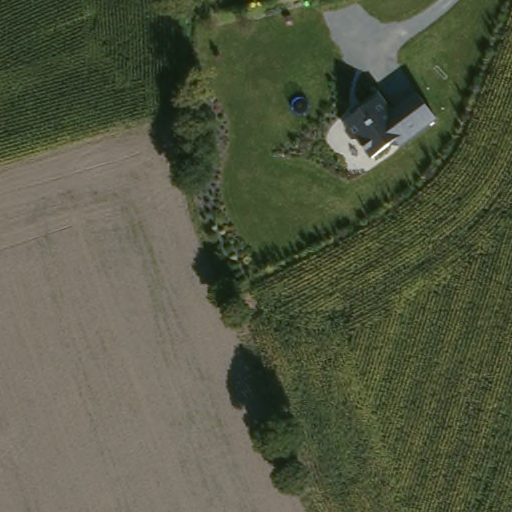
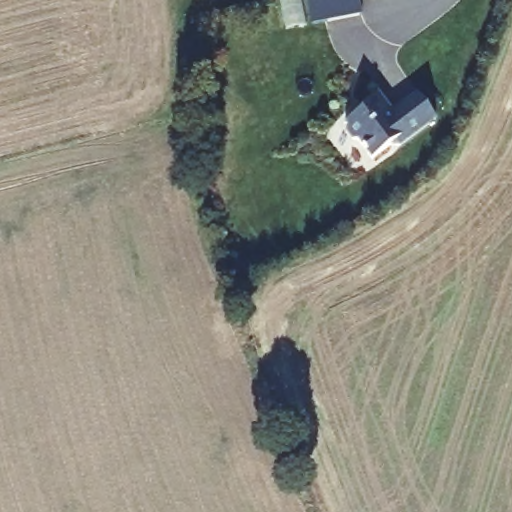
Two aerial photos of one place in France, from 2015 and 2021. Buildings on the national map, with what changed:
new [(313,23),(310,0),(359,0),(361,15),(313,23)]
unchanged [(391,107),(415,86),(437,115),(376,163),(343,121),(352,115),(348,109),(375,86),(391,107)]

